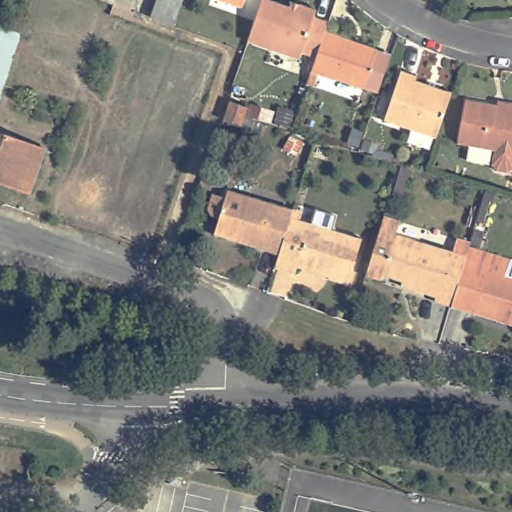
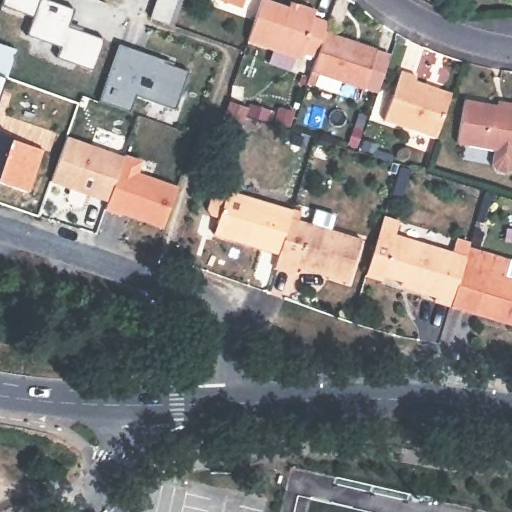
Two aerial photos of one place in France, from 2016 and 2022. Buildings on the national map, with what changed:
new [(57,59),(61,47),(27,36),(33,17),(1,5),(3,0),(46,0),(73,9),(66,27),(103,40),(93,71),(57,59)]
unchanged [(156,0),(175,0),(167,25),(149,19),(153,6),(156,0)]
unchanged [(234,0),(242,0),(241,2),(234,0)]
unchanged [(247,41),(261,0),(268,0),(288,7),(290,1),(299,5),(315,10),(313,16),(328,21),(324,32),(315,57),(301,53),(299,59),(247,41)]
demolished [(25,34),(3,104),(0,103),(0,37),(3,27),(25,34)]
unchanged [(376,50),(363,88),(311,70),(315,57),(324,32),(376,50)]
new [(0,44),(15,49),(0,98),(0,44)]
new [(174,109),(134,96),(129,113),(99,102),(119,46),(187,72),(174,109)]
unchanged [(400,70),(416,76),(415,80),(451,94),(435,138),(383,120),(400,70)]
unchanged [(512,163),(506,167),(496,165),(492,160),(495,145),(457,138),(465,95),(512,103),(512,163)]
unchanged [(228,101),(247,107),(243,117),(240,126),(221,120),(228,101)]
unchanged [(250,105),(272,112),(269,122),(247,115),(250,105)]
unchanged [(34,192),(0,180),(0,133),(48,150),(34,192)]
unchanged [(344,133),(359,137),(355,149),(341,144),(344,133)]
unchanged [(107,202),(51,181),(67,136),(123,156),(107,202)]
unchanged [(364,140),(378,144),(376,150),(393,155),(391,162),(374,157),(375,155),(360,150),(364,140)]
new [(142,161),(139,174),(177,185),(162,230),(121,215),(120,218),(103,211),(107,202),(119,166),(123,156),(142,161)]
unchanged [(208,235),(213,217),(205,215),(202,209),(206,194),(219,197),(222,190),(287,210),(284,218),(273,254),(208,235)]
unchanged [(383,275),(381,280),(366,275),(384,216),(399,221),(395,235),(452,252),(456,239),(470,243),(468,247),(465,257),(450,305),(434,300),(435,296),(410,288),(400,285),(401,280),(383,275)]
unchanged [(356,240),(343,282),(319,275),(320,271),(292,263),(289,274),(269,267),(273,254),(284,218),(356,240)]
unchanged [(450,305),(465,257),(468,247),(493,255),(512,260),(512,324),(450,305)]

